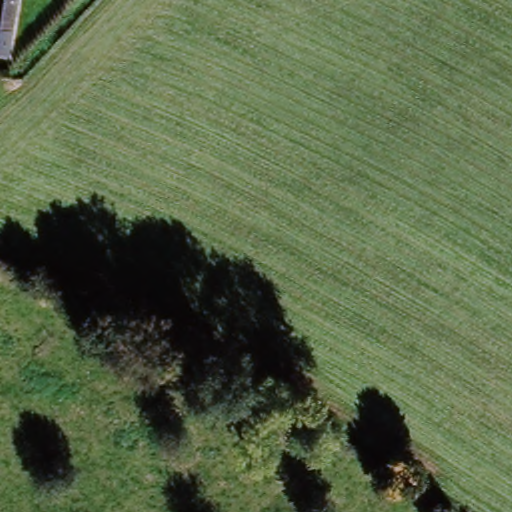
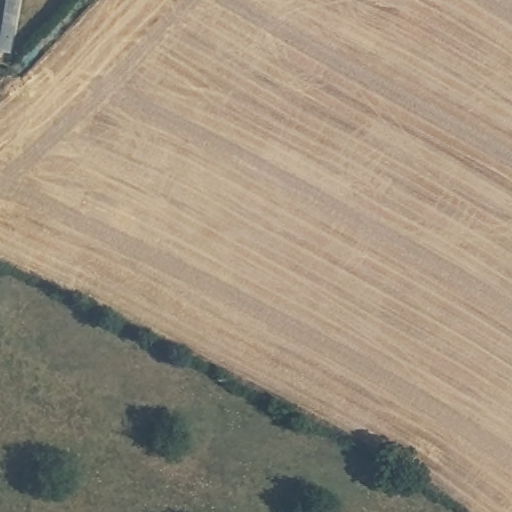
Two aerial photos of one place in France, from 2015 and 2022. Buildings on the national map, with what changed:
unchanged [(0,55),(0,0),(17,0),(7,55),(0,55)]

